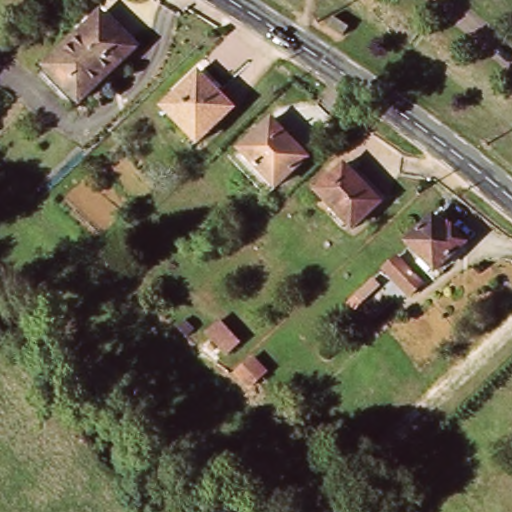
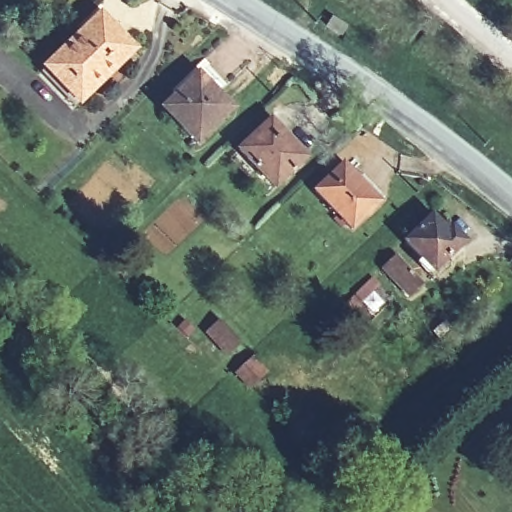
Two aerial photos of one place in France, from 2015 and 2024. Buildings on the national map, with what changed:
unchanged [(337,12),(351,23),(343,33),(330,23),(337,12)]
unchanged [(101,18),(137,52),(81,104),(48,69),(101,18)]
unchanged [(200,77),(232,112),(199,145),(165,109),(200,77)]
unchanged [(273,124),(310,162),(279,191),(241,154),(273,124)]
unchanged [(346,168),(382,205),(355,232),(318,195),(346,168)]
unchanged [(434,221),(448,233),(456,229),(468,245),(436,275),(407,246),(434,221)]
unchanged [(396,251),(423,278),(411,290),(385,263),(396,251)]
unchanged [(225,319),(245,343),(232,353),(212,328),(225,319)]
unchanged [(254,353),(268,368),(254,382),(240,367),(254,353)]

